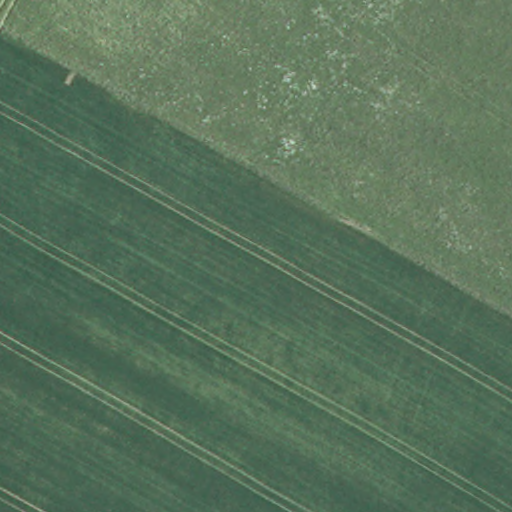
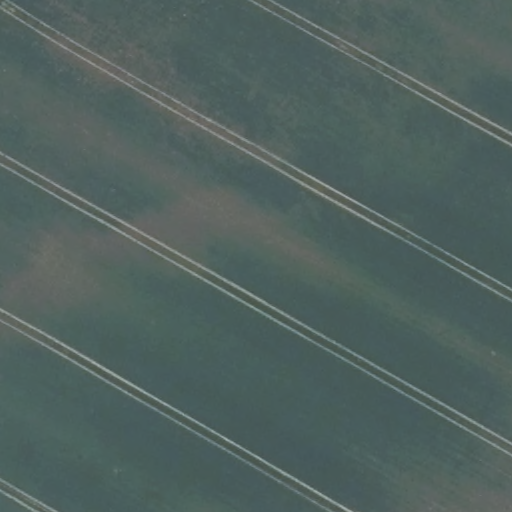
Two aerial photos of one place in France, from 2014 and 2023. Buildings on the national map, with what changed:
[]

